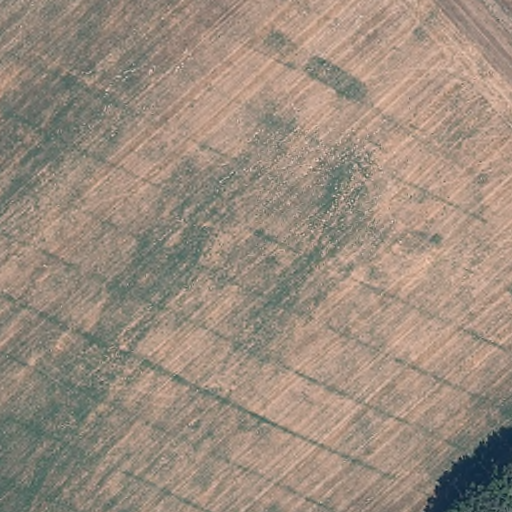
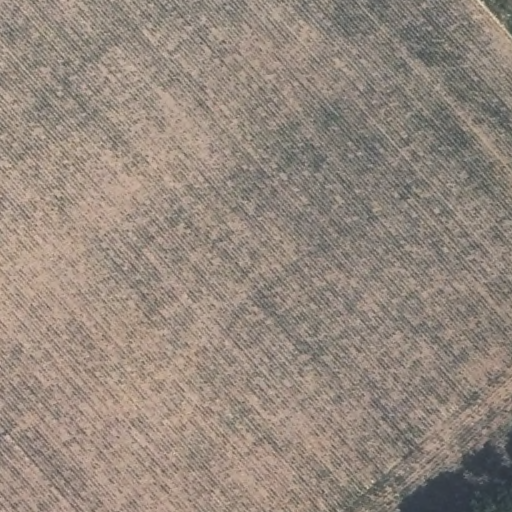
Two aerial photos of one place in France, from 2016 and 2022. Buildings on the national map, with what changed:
[]

